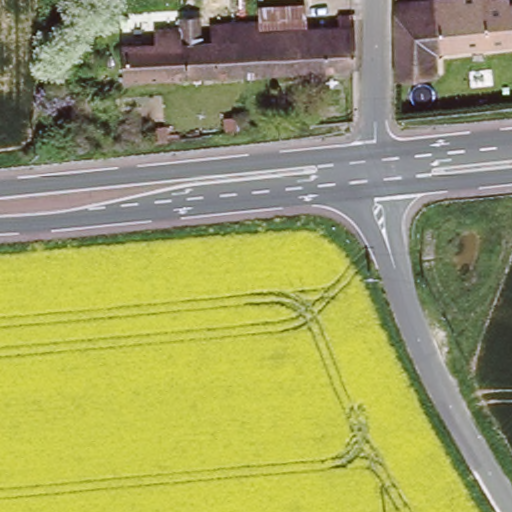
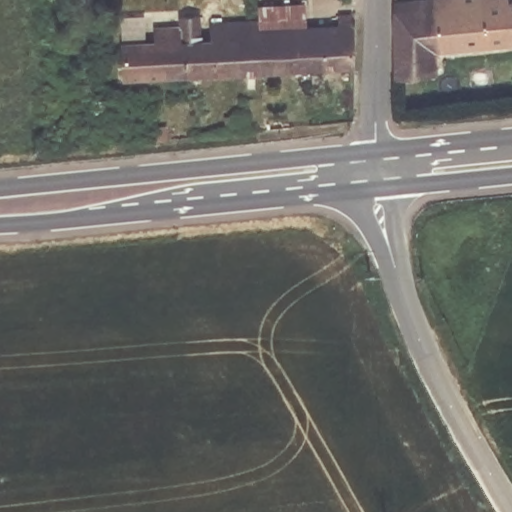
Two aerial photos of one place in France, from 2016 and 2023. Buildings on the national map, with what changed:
unchanged [(512,0),(512,46),(437,51),(439,97),(455,96),(456,110),(399,116),(399,1),(413,0),(469,0),(470,1),(493,0),(512,0)]
unchanged [(187,80),(124,84),(124,31),(180,29),(212,24),(259,23),(260,5),(304,1),(307,30),(353,29),(355,71),(187,80)]
unchanged [(316,126),(315,118),(360,114),(359,121),(316,126)]
unchanged [(260,123),(272,122),(289,121),(290,128),(272,130),(260,131),(260,123)]
unchanged [(175,140),(174,133),(207,128),(208,136),(175,140)]

